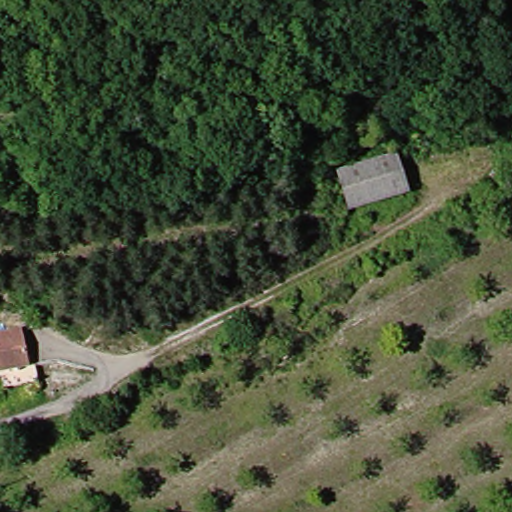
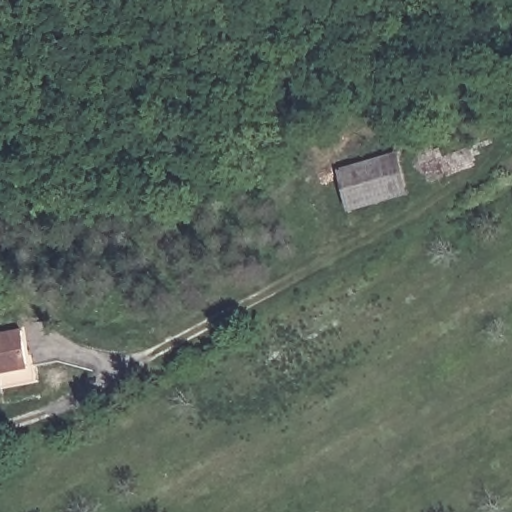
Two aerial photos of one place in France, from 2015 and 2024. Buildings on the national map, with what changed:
unchanged [(345,209),(335,178),(392,163),(401,197),(345,209)]
unchanged [(40,364),(43,379),(8,387),(4,370),(0,371),(0,331),(24,326),(31,366),(40,364)]

